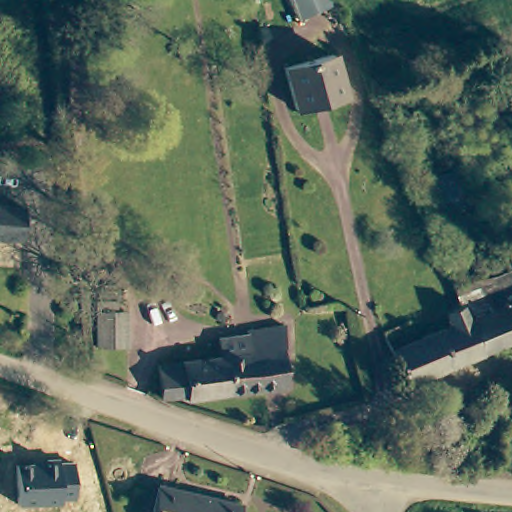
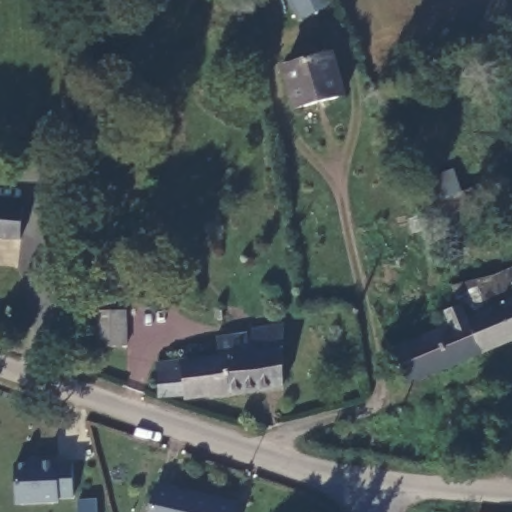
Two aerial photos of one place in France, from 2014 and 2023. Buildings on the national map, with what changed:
unchanged [(336,0),(336,2),(300,18),(292,0),(336,0)]
unchanged [(293,113),(284,68),(332,59),(342,103),(293,113)]
unchanged [(433,202),(437,209),(430,213),(418,190),(458,173),(465,189),(433,202)]
unchanged [(17,245),(0,244),(0,207),(22,209),(17,245)]
unchanged [(455,299),(512,274),(512,346),(481,359),(456,303),(455,299)]
unchanged [(401,392),(378,336),(456,303),(481,359),(401,392)]
unchanged [(95,349),(96,314),(127,315),(127,349),(95,349)]
unchanged [(185,358),(224,354),(220,334),(285,325),(289,392),(176,401),(176,394),(155,397),(160,362),(185,358)]
unchanged [(75,498),(62,499),(62,504),(17,505),(15,463),(30,462),(30,457),(59,456),(60,462),(73,461),(75,498)]
unchanged [(154,489),(236,501),(235,512),(150,512),(154,489)]

